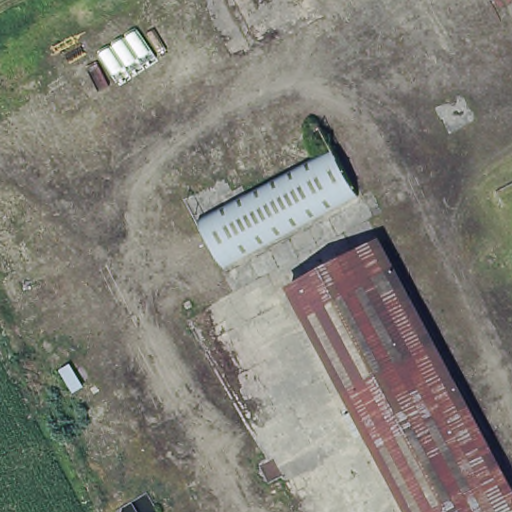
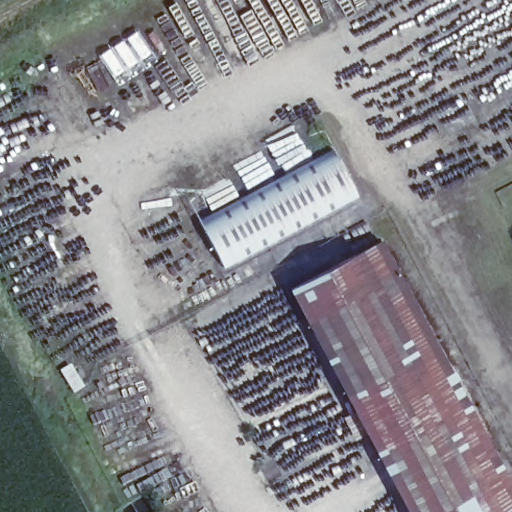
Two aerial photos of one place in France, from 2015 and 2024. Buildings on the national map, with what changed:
unchanged [(362,197),(227,269),(200,218),(334,147),(362,197)]
unchanged [(512,474),(512,504),(497,512),(417,512),(368,419),(292,278),(379,230),(451,362),(512,474)]

